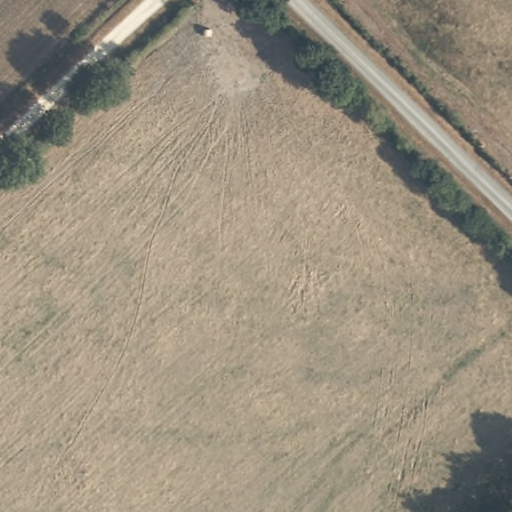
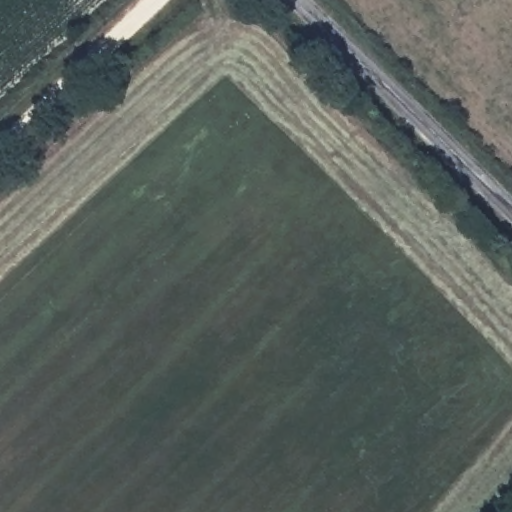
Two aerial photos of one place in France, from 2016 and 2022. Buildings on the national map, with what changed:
[]

